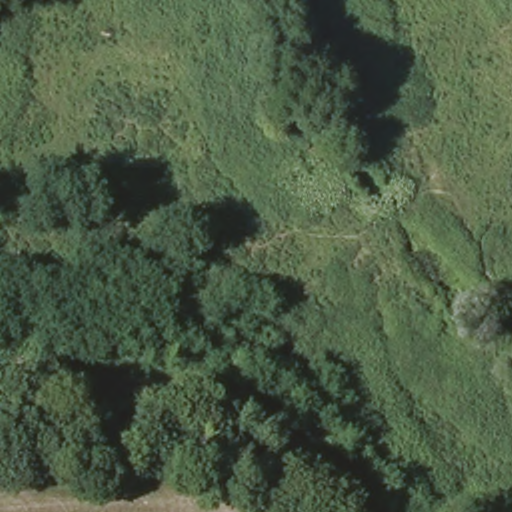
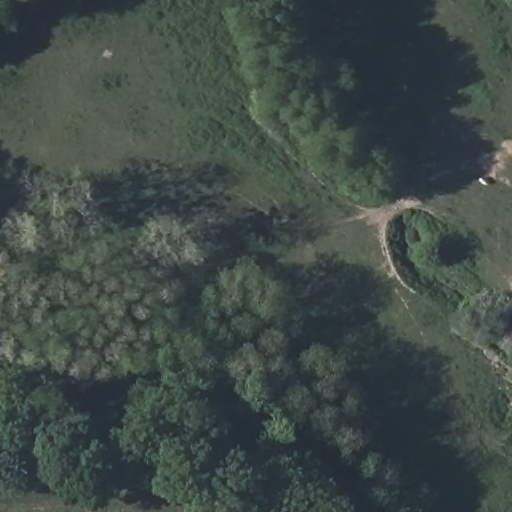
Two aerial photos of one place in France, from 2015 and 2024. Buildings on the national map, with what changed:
[]

